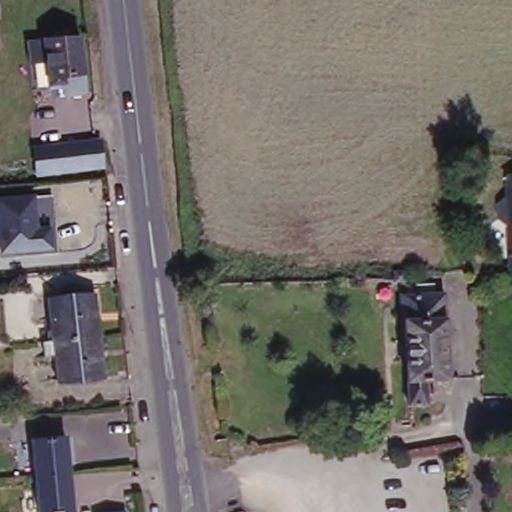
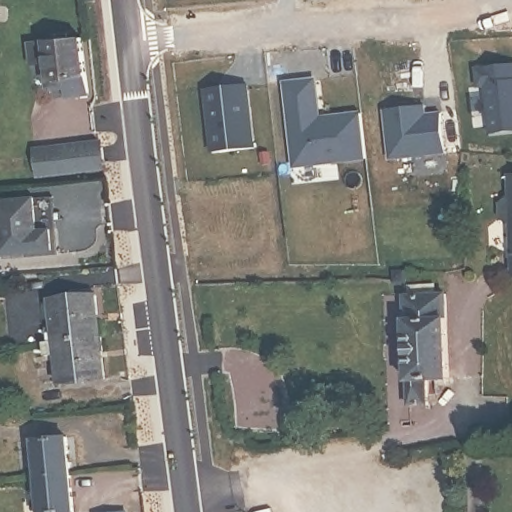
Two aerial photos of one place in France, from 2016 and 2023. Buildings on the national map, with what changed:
unchanged [(91,90),(68,92),(66,79),(54,80),(49,35),(86,33),(91,90)]
new [(490,133),(485,88),(476,89),(474,74),(512,69),(512,131),(490,133)]
new [(312,84),(316,121),(358,117),(363,161),(293,170),(284,87),(312,84)]
new [(244,89),(250,151),(210,155),(203,93),(244,89)]
new [(421,110),(422,118),(439,117),(443,156),(388,163),(383,115),(421,110)]
unchanged [(104,161),(36,168),(33,144),(101,139),(104,161)]
unchanged [(509,220),(503,215),(502,201),(508,195),(512,194),(512,220),(509,220)]
unchanged [(44,226),(46,247),(17,249),(0,250),(0,198),(29,195),(31,226),(44,226)]
unchanged [(392,274),(404,273),(404,283),(392,285),(392,282),(392,274)]
unchanged [(445,292),(448,377),(425,379),(425,402),(407,403),(404,294),(445,292)]
unchanged [(48,302),(94,296),(99,337),(52,341),(48,302)]
unchanged [(99,337),(104,380),(57,385),(52,341),(99,337)]
unchanged [(32,440),(66,437),(70,473),(36,477),(32,440)]
unchanged [(74,512),(40,512),(36,477),(70,473),(74,512)]

